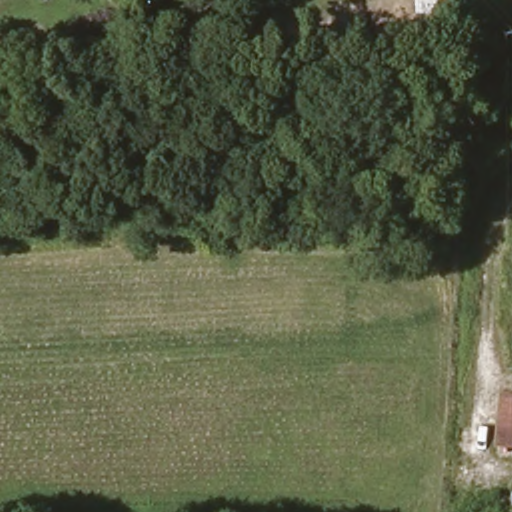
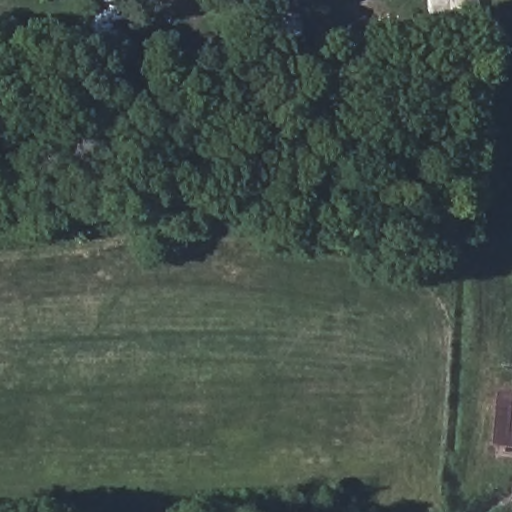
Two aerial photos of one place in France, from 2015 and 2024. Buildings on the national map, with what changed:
unchanged [(512,395),(512,445),(497,443),(502,394),(512,395)]

